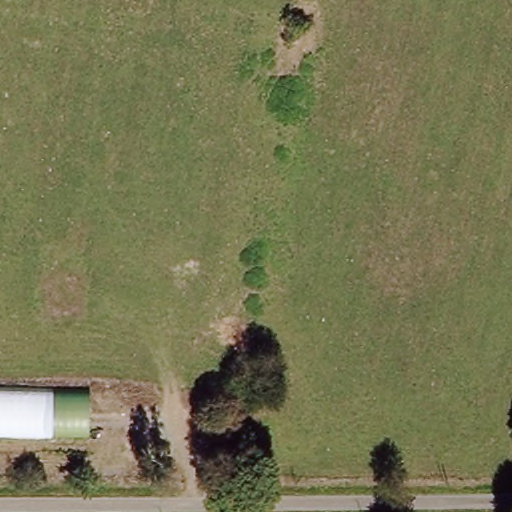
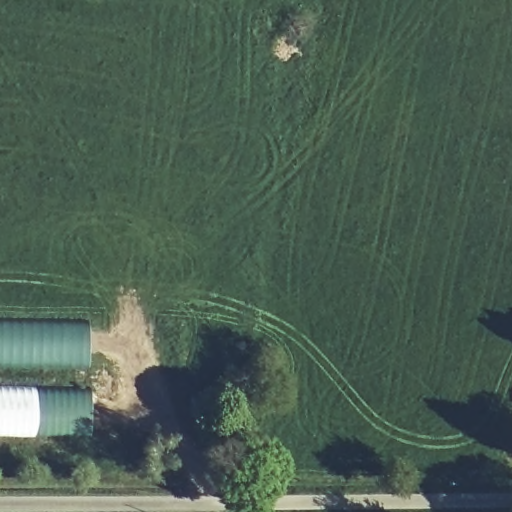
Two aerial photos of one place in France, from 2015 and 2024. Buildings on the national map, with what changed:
new [(90,366),(0,364),(0,320),(88,322),(90,366)]
unchanged [(0,430),(0,385),(88,386),(87,430),(0,430)]

